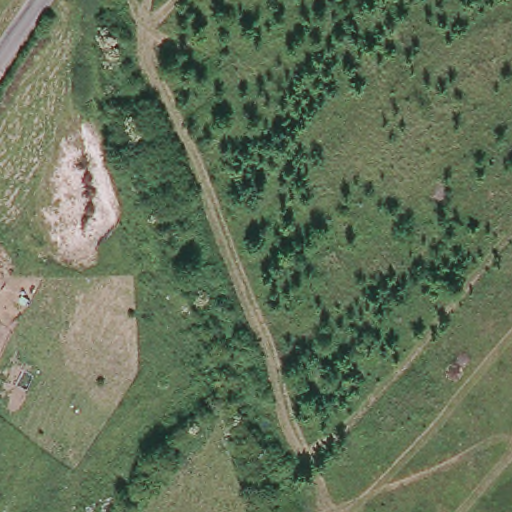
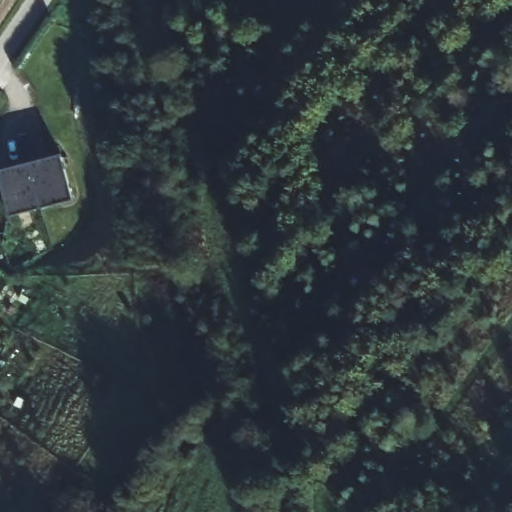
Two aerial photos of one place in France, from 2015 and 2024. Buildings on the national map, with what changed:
new [(18,139),(28,137),(34,161),(61,154),(73,200),(10,217),(0,178),(0,170),(24,164),(18,139)]

